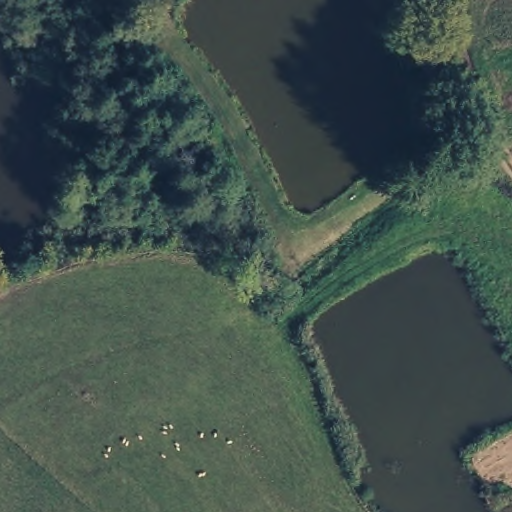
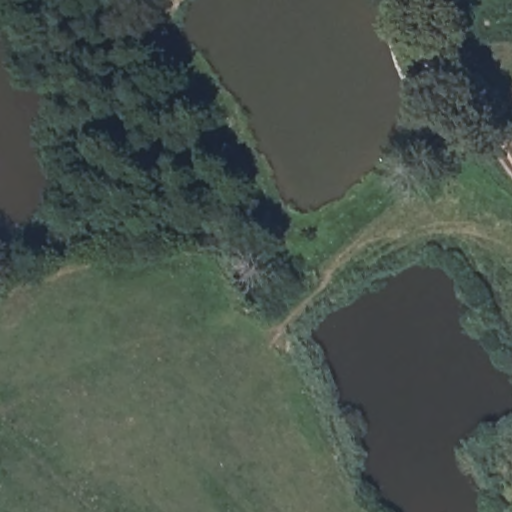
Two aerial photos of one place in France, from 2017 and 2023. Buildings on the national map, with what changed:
unchanged [(428,84),(413,45),(430,37),(448,79),(428,84)]

